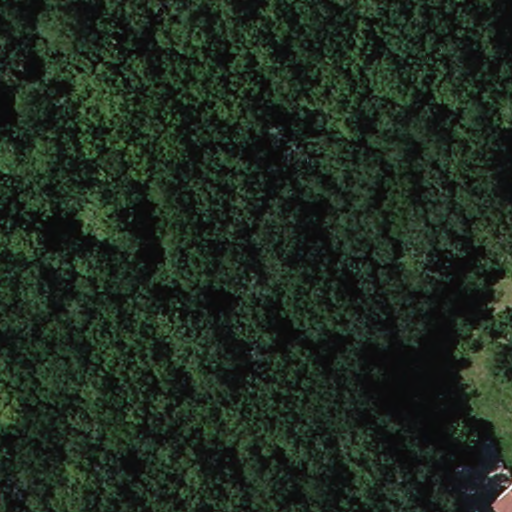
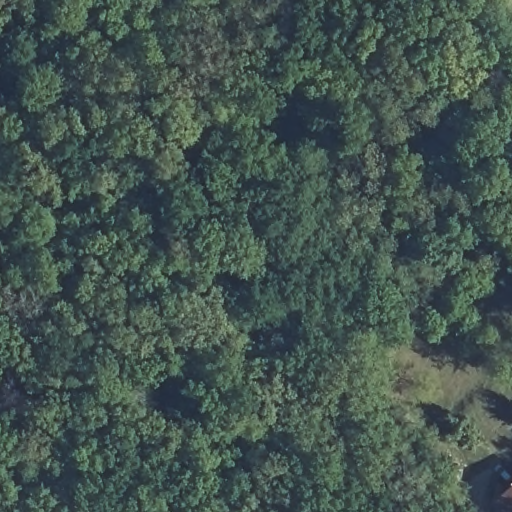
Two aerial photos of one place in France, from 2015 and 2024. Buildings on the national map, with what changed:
unchanged [(512,486),(512,512),(506,512),(496,502),(512,486)]

